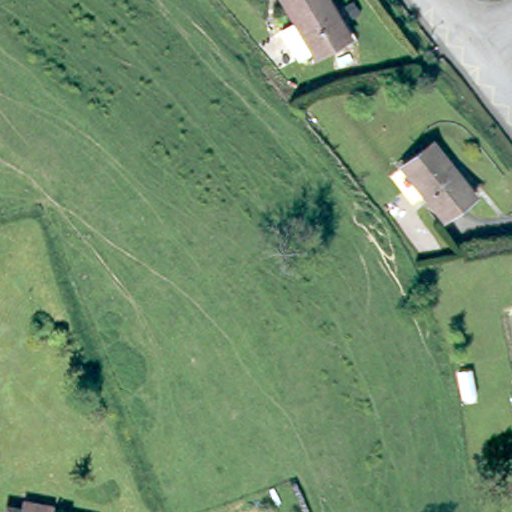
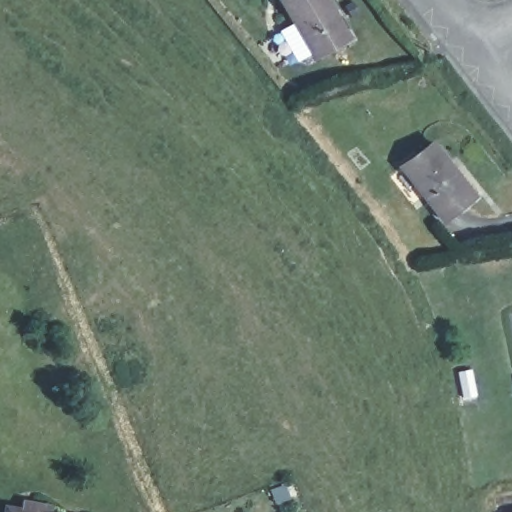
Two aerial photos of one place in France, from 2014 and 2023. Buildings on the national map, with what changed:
unchanged [(297,18),(286,0),(332,0),(352,32),(318,53),(315,46),(302,54),(284,26),(297,18)]
unchanged [(432,141),(475,195),(444,220),(401,166),(432,141)]
unchanged [(5,506),(20,508),(20,501),(50,506),(49,512),(3,512),(5,506)]

